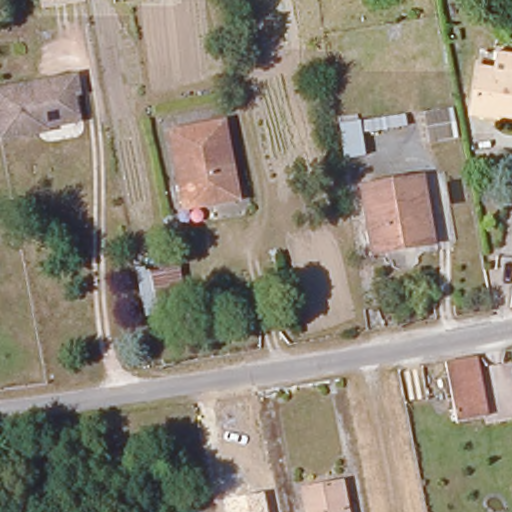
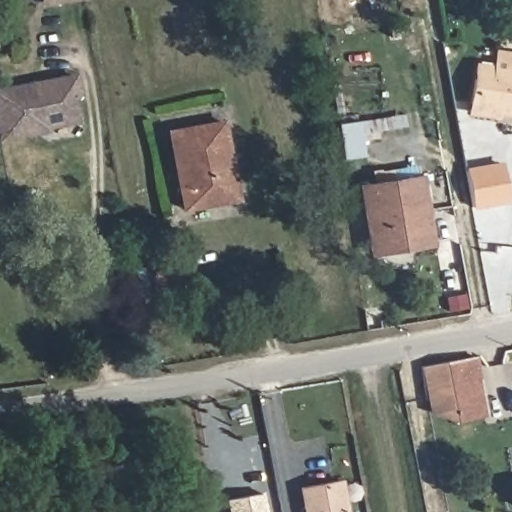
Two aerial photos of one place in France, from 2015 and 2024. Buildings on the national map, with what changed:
unchanged [(89,5),(44,1),(43,0),(89,0),(89,5)]
unchanged [(466,111),(468,104),(473,67),(512,73),(512,115),(491,112),(490,115),(466,111)]
unchanged [(51,135),(41,136),(3,142),(0,129),(0,94),(69,80),(76,79),(79,94),(72,95),(76,116),(78,124),(50,130),(51,135)]
unchanged [(454,105),(459,139),(427,145),(420,111),(454,105)]
unchanged [(362,119),(368,156),(340,161),(335,124),(362,119)]
unchanged [(239,201),(185,212),(170,132),(223,124),(239,201)]
new [(472,209),(464,169),(503,160),(511,202),(472,209)]
unchanged [(426,223),(409,244),(387,247),(367,232),(359,184),(419,174),(426,223)]
unchanged [(177,308),(153,311),(146,270),(169,266),(177,308)]
unchanged [(473,360),(484,420),(456,426),(444,365),(473,360)]
unchanged [(334,483),(339,512),(299,512),(294,491),(334,483)]
unchanged [(224,512),(222,497),(265,491),(269,512),(224,512)]

